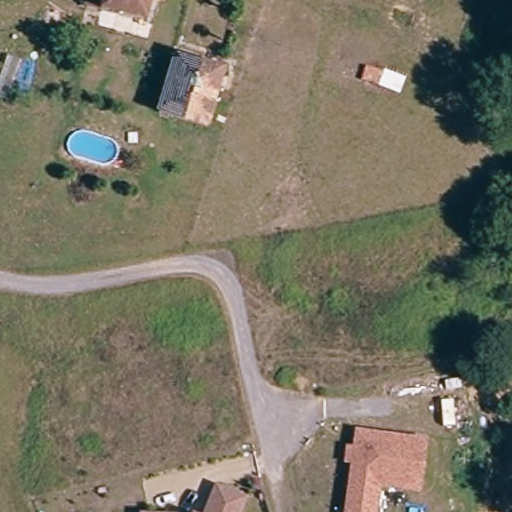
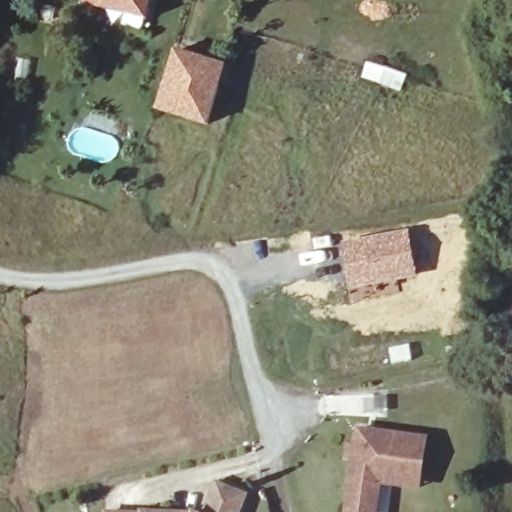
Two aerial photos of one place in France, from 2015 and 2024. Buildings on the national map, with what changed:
unchanged [(144,13),(102,5),(102,0),(146,0),(144,13)]
unchanged [(172,49),(183,51),(188,28),(219,34),(215,58),(222,59),(210,121),(162,106),(172,49)]
new [(408,228),(418,278),(374,290),(348,294),(337,244),(408,228)]
unchanged [(392,477),(392,482),(381,481),(376,512),(348,512),(361,431),(425,439),(422,480),(392,477)]
unchanged [(204,512),(217,480),(250,492),(242,512),(204,512)]
unchanged [(202,512),(143,512),(192,509),(202,512)]

